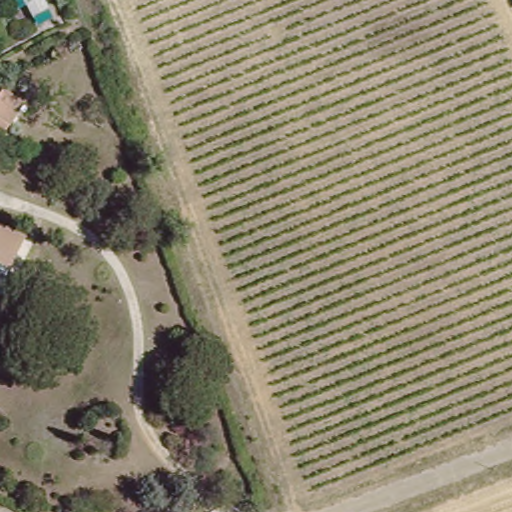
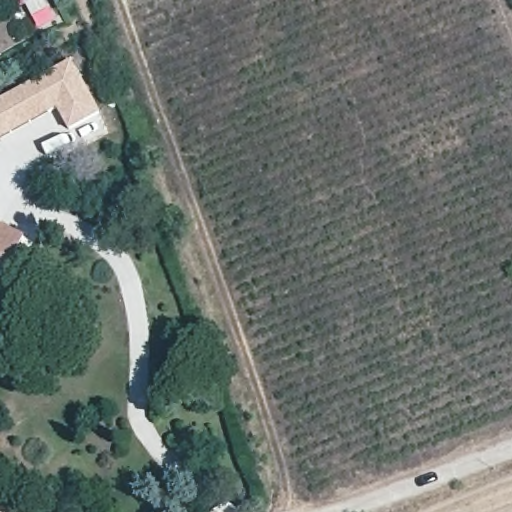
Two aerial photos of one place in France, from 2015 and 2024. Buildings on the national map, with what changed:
unchanged [(50,10),(34,17),(24,0),(46,0),(50,10)]
new [(57,109),(0,140),(0,99),(71,60),(100,114),(68,131),(57,109)]
demolished [(24,101),(0,138),(0,94),(5,88),(24,101)]
unchanged [(0,281),(0,232),(20,242),(0,281)]

